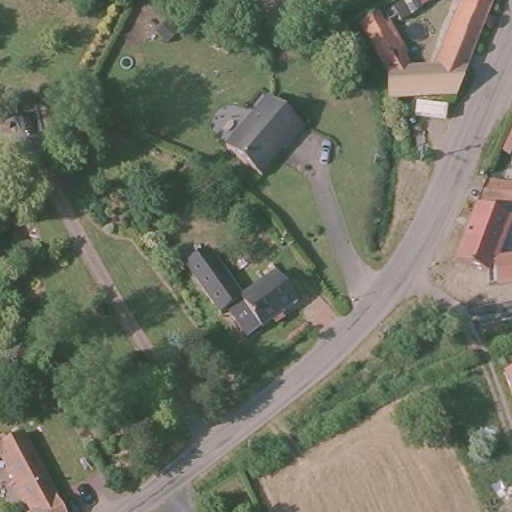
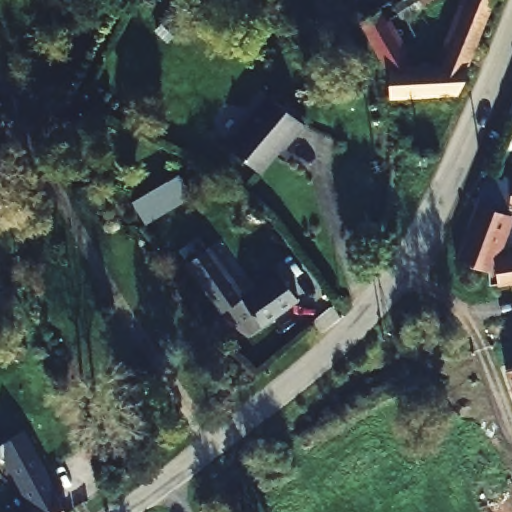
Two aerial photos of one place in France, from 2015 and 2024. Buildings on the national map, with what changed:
unchanged [(395,92),(394,67),(366,17),(395,0),(423,0),(391,18),(417,66),(445,64),(470,0),(498,0),(463,88),(395,92)]
unchanged [(307,123),(289,147),(286,145),(263,173),(227,145),(268,92),(307,123)]
new [(191,198),(151,221),(142,215),(134,200),(177,175),(191,198)]
unchanged [(502,232),(497,244),(489,266),(457,254),(487,175),(512,177),(512,236),(502,232)]
unchanged [(497,244),(512,243),(512,291),(491,294),(489,266),(497,244)]
unchanged [(247,292),(283,267),(304,294),(255,329),(234,303),(227,307),(192,259),(212,244),(247,292)]
unchanged [(512,365),(512,383),(507,367),(512,365)]
unchanged [(4,447),(0,449),(0,432),(4,429),(7,435),(22,426),(67,512),(27,512),(35,507),(4,447)]

